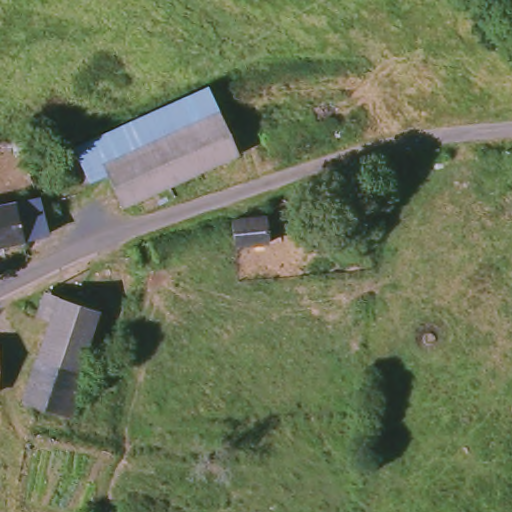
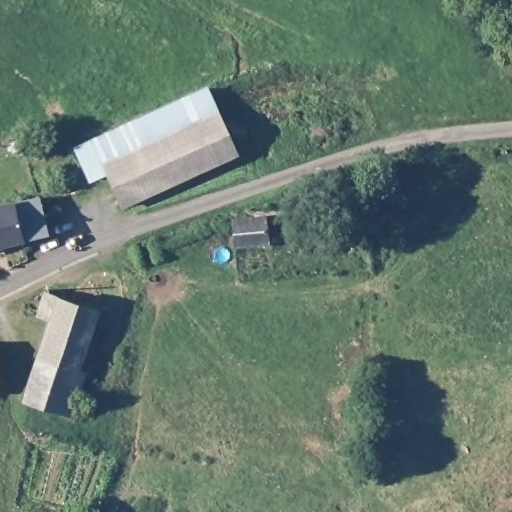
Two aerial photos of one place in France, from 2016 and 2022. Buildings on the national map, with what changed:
unchanged [(122,204),(108,172),(88,180),(75,147),(206,87),(236,152),(122,204)]
unchanged [(0,241),(0,204),(37,197),(46,230),(0,241)]
unchanged [(271,220),(282,220),(287,224),(287,230),(283,235),(273,237),(273,244),(240,247),(237,222),(271,216),(271,220)]
unchanged [(83,371),(91,373),(77,416),(23,398),(61,298),(102,312),(83,371)]

